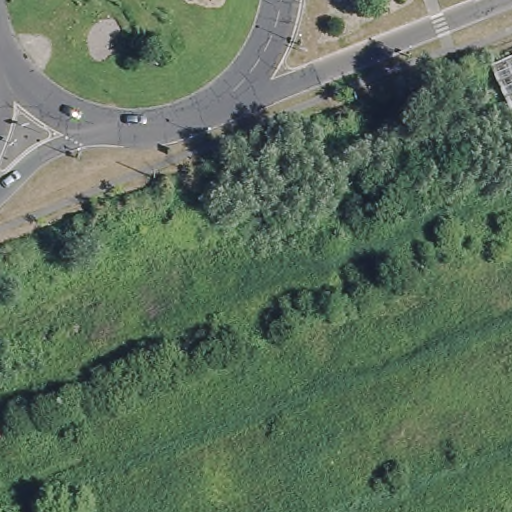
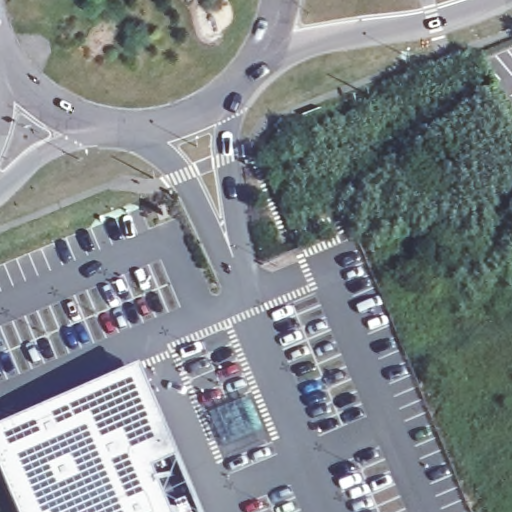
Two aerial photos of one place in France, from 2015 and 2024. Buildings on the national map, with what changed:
new [(154,475),(169,512),(16,512),(0,474),(0,429),(142,370),(178,465),(154,475)]

